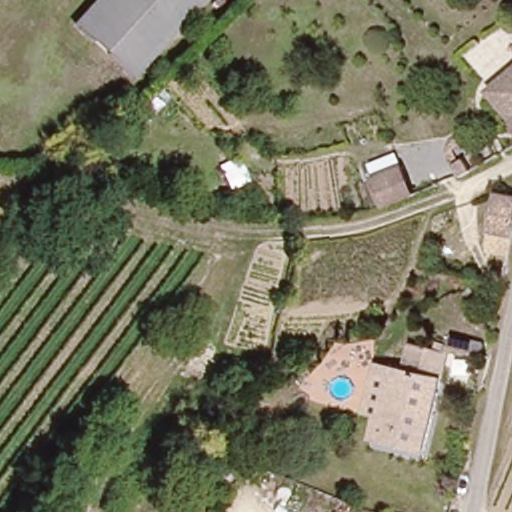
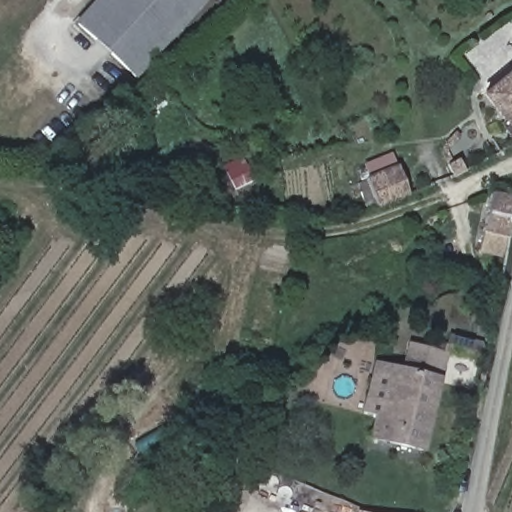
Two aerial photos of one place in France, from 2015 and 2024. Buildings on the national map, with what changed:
unchanged [(74,22),(94,0),(198,0),(132,73),(74,22)]
unchanged [(487,89),(512,65),(512,116),(487,89)]
unchanged [(452,157),(463,152),(474,171),(462,177),(452,157)]
unchanged [(362,170),(392,156),(405,186),(371,198),(362,170)]
unchanged [(512,194),(512,234),(489,228),(494,204),(497,190),(512,194)]
unchanged [(502,255),(478,250),(487,229),(508,235),(502,255)]
unchanged [(485,357),(451,350),(453,340),(487,347),(485,357)]
unchanged [(390,445),(371,440),(376,420),(364,417),(375,365),(381,342),(383,342),(407,346),(438,351),(440,347),(451,350),(419,451),(416,463),(387,455),(390,445)]

